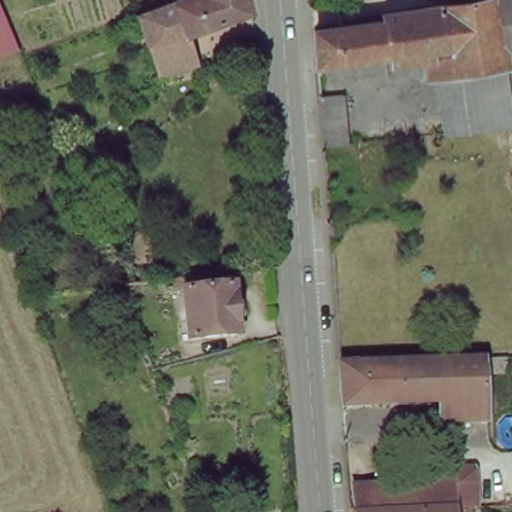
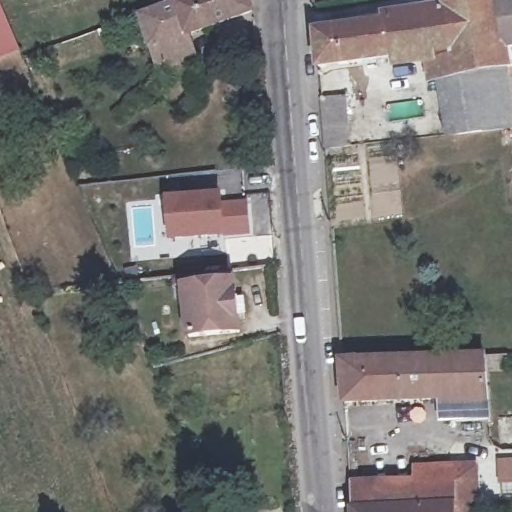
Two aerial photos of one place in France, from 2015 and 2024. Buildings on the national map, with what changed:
unchanged [(189,38),(199,66),(191,69),(195,80),(170,89),(145,11),(174,0),(247,0),(251,11),(189,38)]
unchanged [(322,75),(319,38),(387,26),(387,21),(500,1),(510,0),(512,0),(512,69),(459,78),(455,55),(322,75)]
unchanged [(477,0),(460,3),(460,0),(477,0)]
unchanged [(18,49),(0,56),(0,6),(9,29),(18,49)]
unchanged [(512,69),(512,131),(509,131),(465,136),(459,78),(512,69)]
unchanged [(334,103),(338,156),(318,158),(314,105),(334,103)]
new [(219,194),(220,204),(245,202),(247,232),(170,238),(167,198),(219,194)]
unchanged [(206,275),(207,288),(243,285),(248,334),(197,339),(192,290),(185,290),(184,278),(206,275)]
unchanged [(340,361),(488,355),(486,422),(452,423),(451,398),(344,401),(340,361)]
unchanged [(420,480),(421,466),(475,467),(475,508),(472,508),(352,511),(350,486),(420,480)]
unchanged [(472,508),(472,512),(352,512),(352,511),(472,508)]

